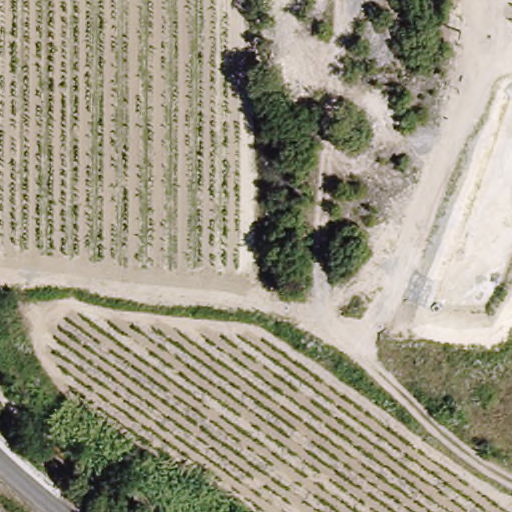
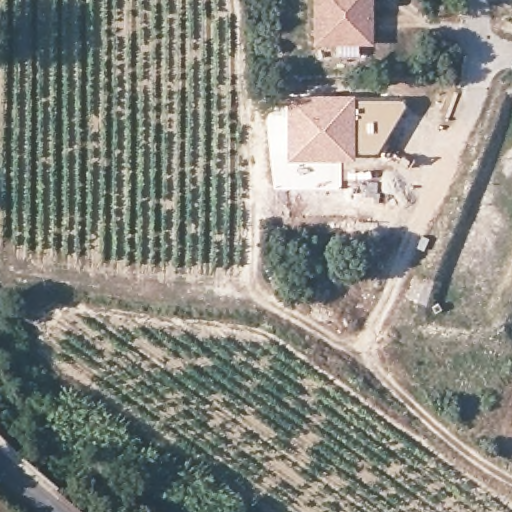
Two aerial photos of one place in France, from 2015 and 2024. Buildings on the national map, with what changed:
new [(309,0),(365,0),(365,3),(360,3),(359,40),(309,39),(309,0)]
new [(354,93),(354,97),(354,154),(354,158),(284,159),(283,95),(354,93)]
new [(354,97),(402,99),(402,101),(404,103),(375,153),(354,154),(354,97)]

